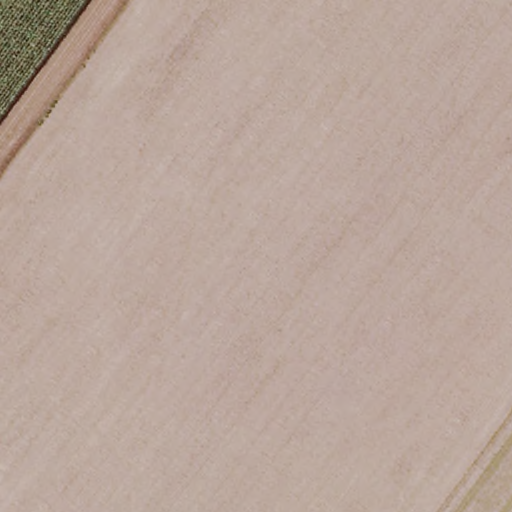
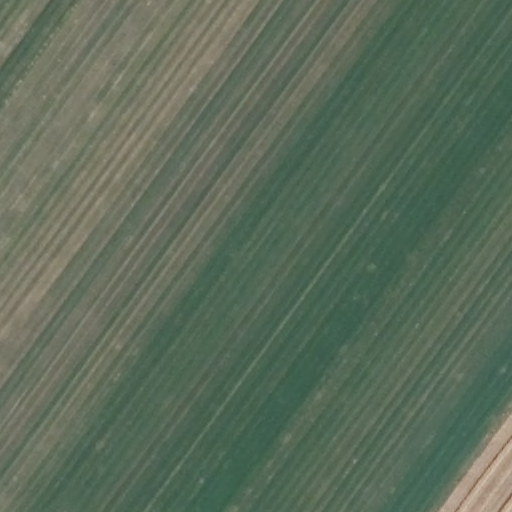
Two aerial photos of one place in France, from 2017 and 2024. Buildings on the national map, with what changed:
[]

